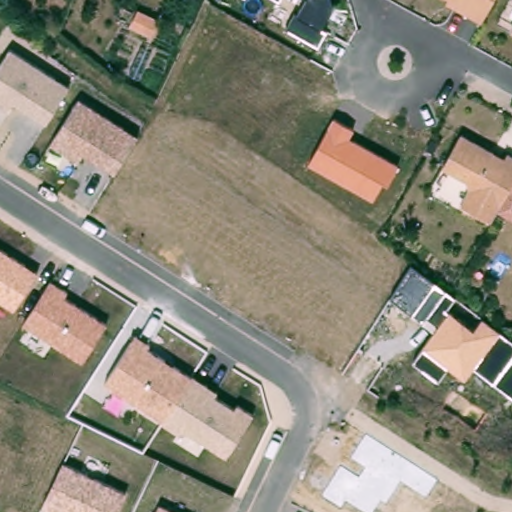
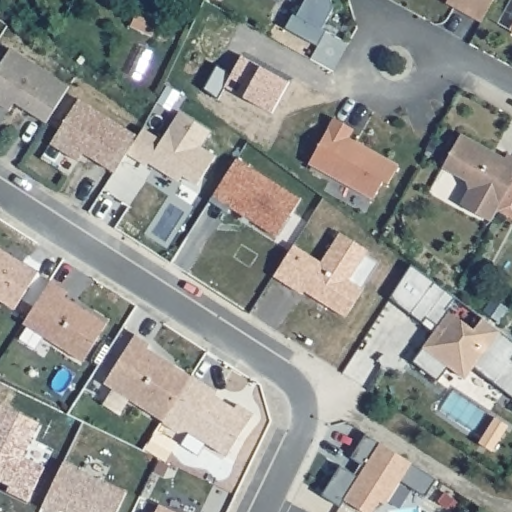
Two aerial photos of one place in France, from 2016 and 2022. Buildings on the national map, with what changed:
unchanged [(334,8),(322,28),(327,31),(318,45),(287,28),(294,13),(303,0),(333,0),(334,8)]
unchanged [(488,19),(446,0),(497,0),(488,19)]
unchanged [(68,86),(45,122),(14,103),(9,111),(0,105),(0,64),(10,48),(68,86)]
unchanged [(80,99),(137,136),(114,172),(84,153),(79,161),(50,143),(80,99)]
new [(137,136),(143,127),(161,139),(180,111),(211,130),(202,146),(217,155),(199,184),(183,176),(179,182),(150,162),(148,166),(126,153),(137,136)]
unchanged [(309,163),(334,117),(355,128),(351,138),(399,166),(389,183),(384,180),(374,198),(309,163)]
unchanged [(500,208),(492,221),(460,204),(468,189),(465,180),(443,166),(461,132),(504,158),(508,152),(512,154),(512,185),(500,208)]
new [(233,159),(298,200),(274,237),(228,208),(224,213),(206,201),(233,159)]
unchanged [(500,208),(512,185),(512,215),(500,208)]
new [(292,243),(319,261),(339,231),(366,248),(347,278),(362,287),(344,315),(303,289),(300,292),(272,274),(292,243)]
unchanged [(0,248),(38,271),(14,309),(0,300),(0,248)]
unchanged [(475,367),(465,380),(448,367),(439,379),(412,362),(436,328),(391,297),(412,266),(455,297),(447,309),(474,327),(482,318),(512,341),(512,359),(512,394),(475,367)]
unchanged [(51,280),(69,290),(65,297),(105,324),(81,361),(22,324),(51,280)]
unchanged [(136,334),(151,343),(149,348),(218,390),(215,395),(235,408),(238,404),(254,414),(229,455),(188,431),(186,434),(105,382),(136,334)]
new [(361,461),(350,455),(366,431),(437,476),(426,494),(399,478),(385,500),(380,497),(370,512),(367,512),(344,497),(340,504),(321,492),(340,462),(354,471),(361,461)]
unchanged [(59,512),(51,512),(43,508),(63,463),(125,492),(116,512),(69,512),(61,508),(59,512)]
unchanged [(176,512),(155,512),(159,504),(176,512)]

